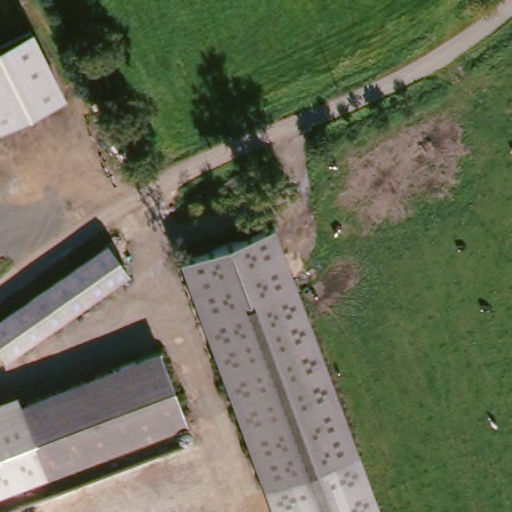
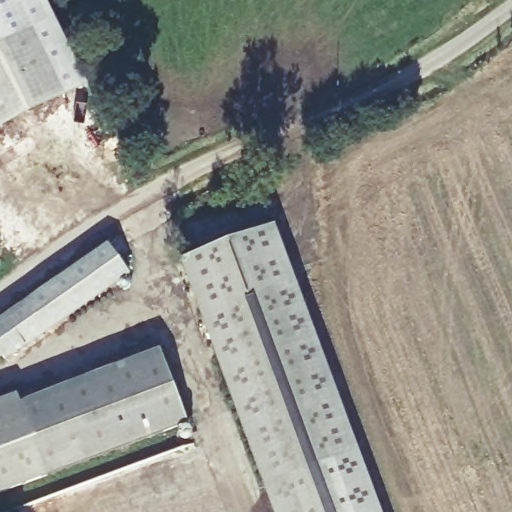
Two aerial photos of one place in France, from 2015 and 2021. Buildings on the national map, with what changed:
new [(0,49),(0,0),(45,0),(88,86),(66,97),(33,32),(0,49)]
unchanged [(0,130),(0,49),(33,32),(66,97),(0,130)]
unchanged [(279,222),(299,278),(204,311),(184,255),(279,222)]
unchanged [(11,357),(0,342),(0,321),(114,242),(135,271),(11,357)]
unchanged [(358,449),(264,482),(204,311),(299,278),(358,449)]
unchanged [(159,350),(187,425),(48,476),(20,401),(159,350)]
unchanged [(0,494),(0,401),(17,395),(20,401),(48,476),(0,494)]
unchanged [(264,482),(358,449),(381,512),(275,512),(264,482)]

